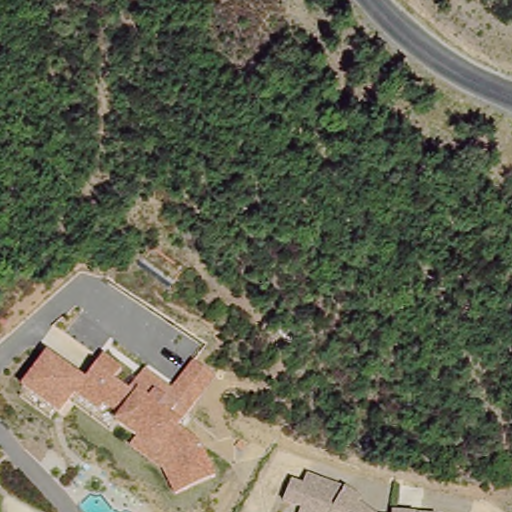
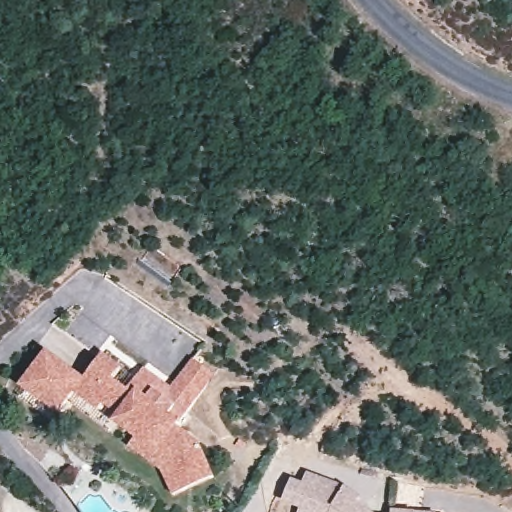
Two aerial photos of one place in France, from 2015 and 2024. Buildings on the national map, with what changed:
unchanged [(41,351),(84,380),(103,355),(116,366),(108,379),(127,389),(142,370),(168,387),(191,356),(216,373),(176,427),(197,446),(213,475),(168,495),(154,466),(148,470),(124,451),(128,435),(109,420),(68,395),(54,416),(16,388),(41,351)]
unchanged [(306,488),(310,477),(346,494),(361,506),(358,511),(359,512),(303,512),(303,511),(286,503),(294,483),(306,488)]

